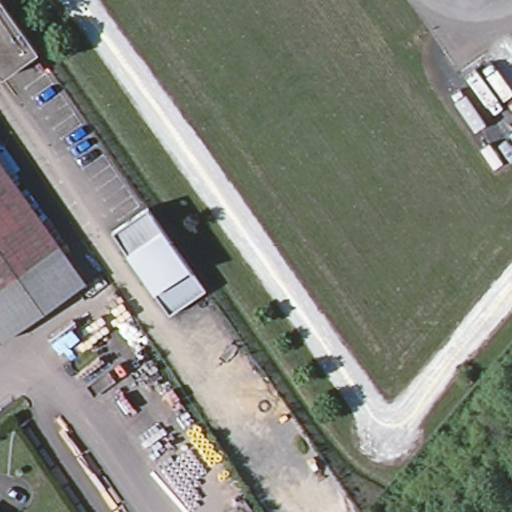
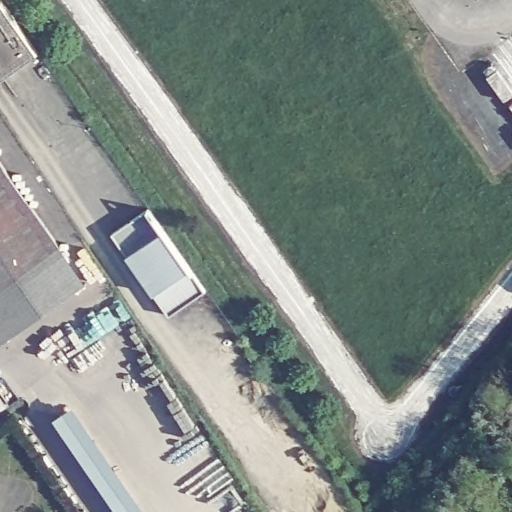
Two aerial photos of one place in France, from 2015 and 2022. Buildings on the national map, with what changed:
unchanged [(3,74),(0,69),(0,0),(3,0),(38,49),(3,74)]
unchanged [(0,333),(0,158),(82,277),(0,333)]
unchanged [(113,238),(148,212),(207,295),(172,320),(146,283),(129,259),(113,238)]

